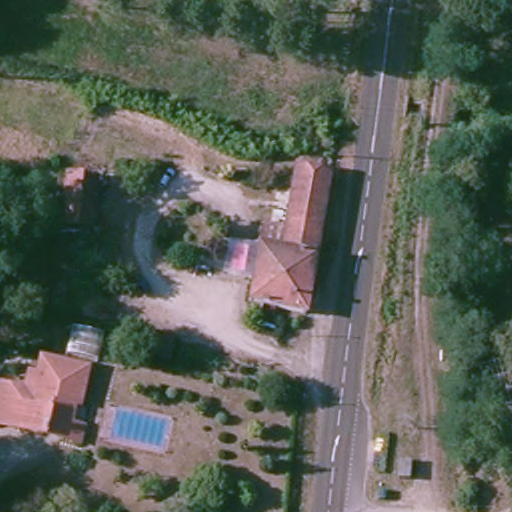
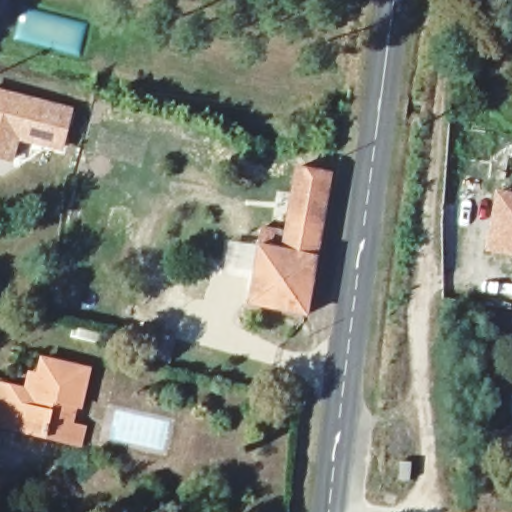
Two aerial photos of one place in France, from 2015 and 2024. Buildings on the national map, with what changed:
new [(72,107),(64,152),(17,141),(12,163),(0,160),(0,89),(72,107)]
unchanged [(247,307),(256,250),(282,254),(294,171),(329,176),(306,316),(247,307)]
demolished [(56,175),(68,177),(105,184),(97,232),(48,224),(56,175)]
new [(512,254),(484,250),(495,189),(512,192),(512,254)]
unchanged [(68,452),(34,442),(0,432),(0,392),(5,393),(18,397),(23,380),(32,383),(36,366),(81,379),(71,415),(65,413),(60,433),(72,436),(68,452)]
unchanged [(393,506),(383,506),(384,497),(393,497),(393,506)]

